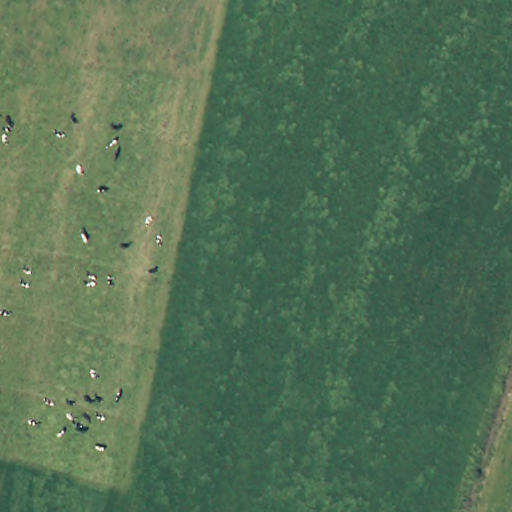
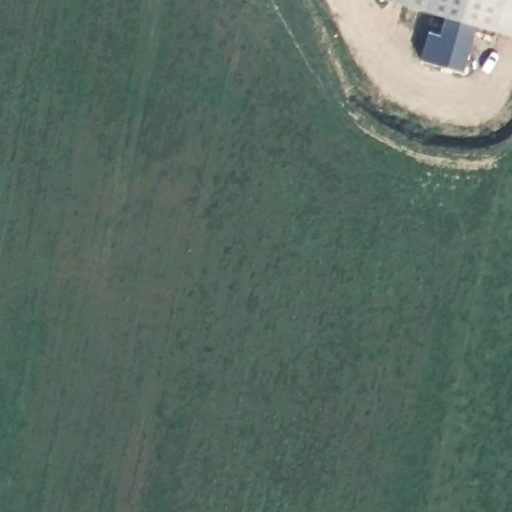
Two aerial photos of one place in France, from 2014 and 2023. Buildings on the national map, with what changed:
new [(478,26),(450,17),(390,0),(512,0),(512,34),(478,26)]
new [(450,17),(478,26),(465,75),(435,66),(450,17)]

